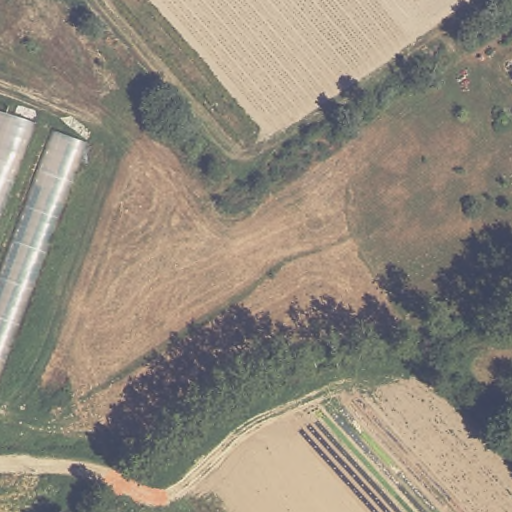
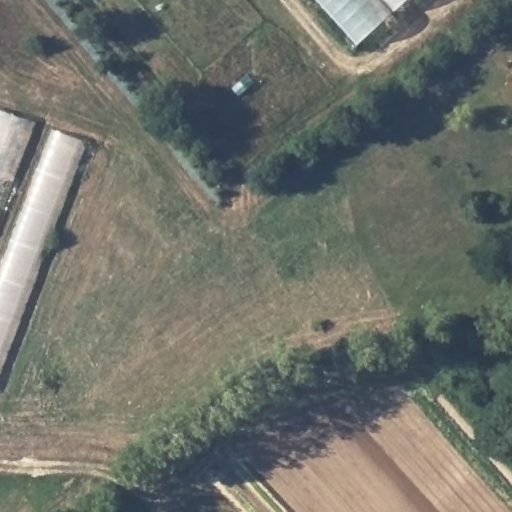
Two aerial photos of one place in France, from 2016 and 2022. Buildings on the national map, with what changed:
new [(357,45),(316,0),(407,0),(357,45)]
unchanged [(39,120),(0,223),(0,107),(39,120)]
unchanged [(56,121),(95,136),(0,390),(0,274),(56,121)]

